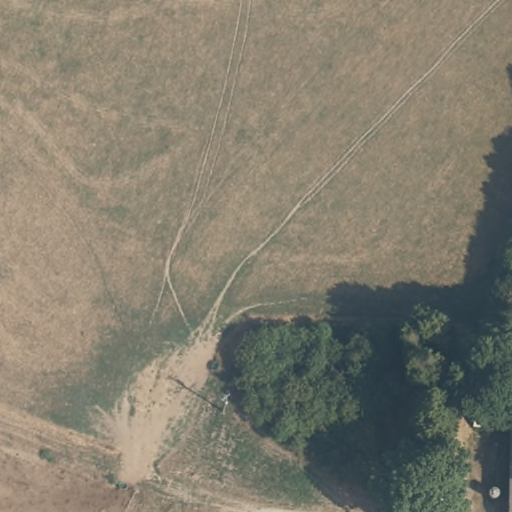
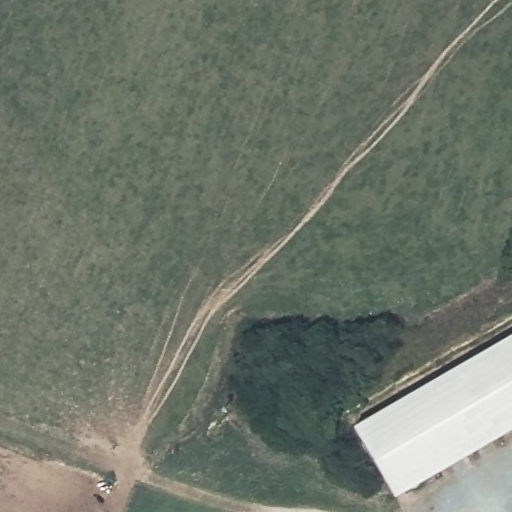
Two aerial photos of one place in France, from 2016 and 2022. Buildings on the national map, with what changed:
new [(512,334),(512,430),(394,497),(353,427),(512,334)]

